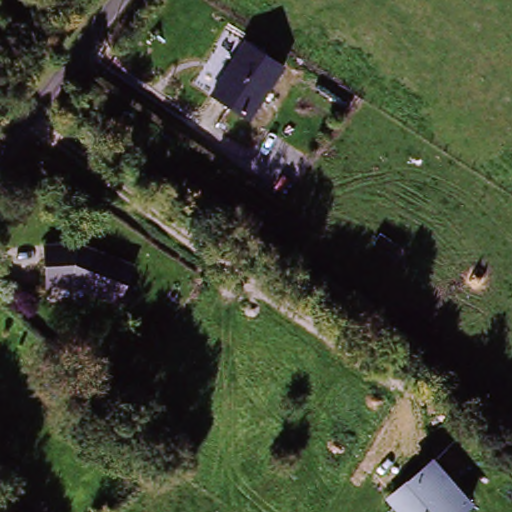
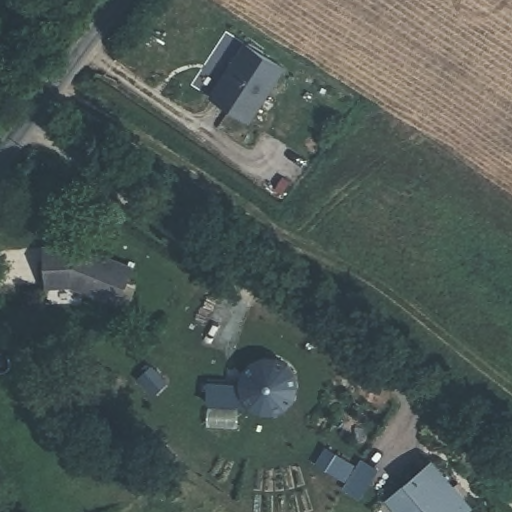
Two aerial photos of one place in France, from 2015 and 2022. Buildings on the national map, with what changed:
unchanged [(283,76),(245,124),(211,97),(250,50),(283,76)]
unchanged [(46,242),(82,242),(130,266),(112,302),(72,281),(45,280),(46,242)]
new [(277,357),(288,363),(297,374),(298,387),(294,400),(287,408),(274,413),(273,413),(260,413),(250,407),(242,396),(239,385),(242,370),(251,362),(261,357),(277,357)]
unchanged [(467,512),(396,512),(385,498),(432,458),(474,506),(467,512)]

